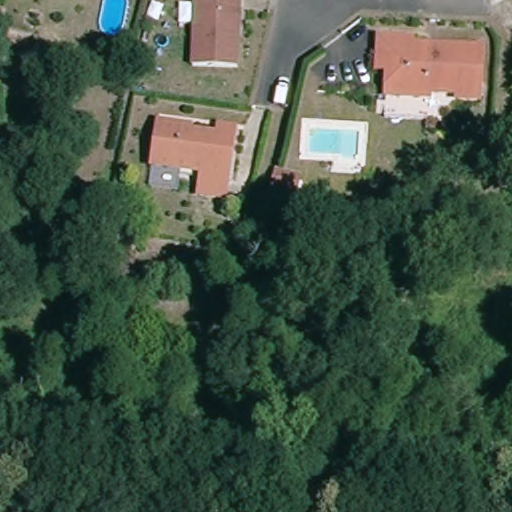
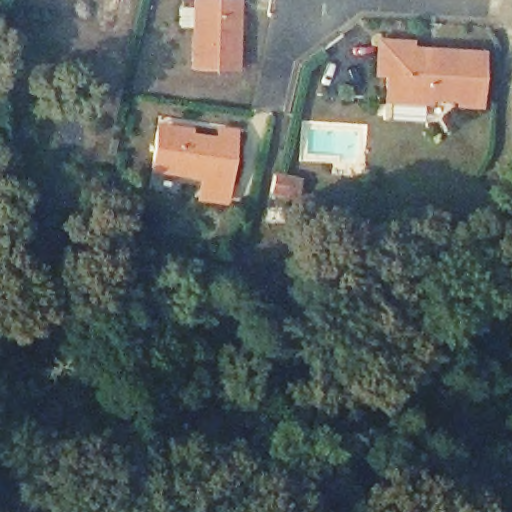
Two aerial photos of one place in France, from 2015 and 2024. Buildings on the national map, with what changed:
unchanged [(237,69),(192,68),(195,0),(239,0),(237,69)]
unchanged [(479,110),(457,109),(457,104),(429,103),(429,108),(386,104),(386,79),(376,78),(378,45),(412,46),(412,53),(482,56),(479,110)]
unchanged [(199,198),(201,176),(152,169),(157,128),(158,124),(191,129),(190,133),(217,137),(219,128),(235,130),(227,180),(225,201),(199,198)]
unchanged [(295,198),(270,192),(275,173),(299,179),(295,198)]

